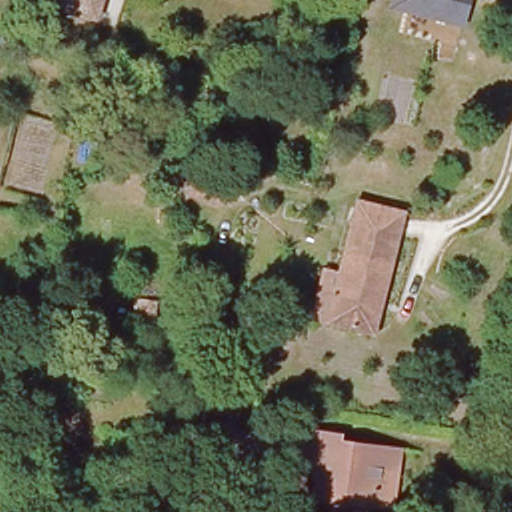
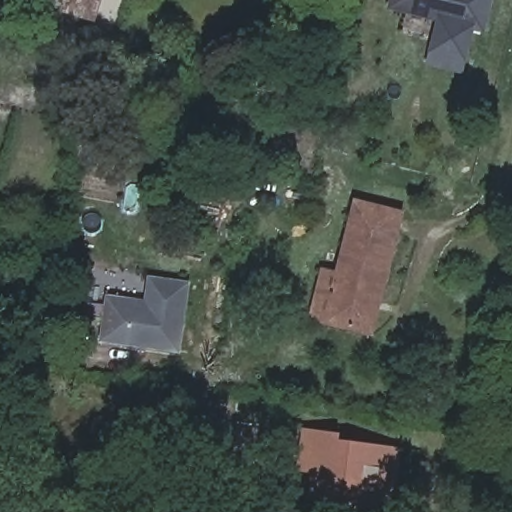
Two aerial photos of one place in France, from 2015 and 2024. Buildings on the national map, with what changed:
unchanged [(44,0),(98,0),(92,20),(56,9),(49,6),(44,1),(44,0)]
unchanged [(389,9),(391,0),(471,0),(464,26),(389,9)]
new [(464,26),(471,0),(493,0),(484,34),(475,31),(463,74),(427,66),(438,20),(464,26)]
unchanged [(199,181),(202,164),(242,173),(239,190),(199,181)]
unchanged [(319,302),(325,272),(341,275),(358,202),(401,211),(371,331),(330,321),(315,318),(319,302)]
unchanged [(25,266),(45,269),(44,285),(43,302),(21,300),(25,266)]
new [(181,355),(100,342),(106,295),(145,300),(149,277),(191,283),(181,355)]
unchanged [(344,440),(343,451),(386,457),(386,454),(405,456),(398,512),(395,512),(315,501),(318,480),(305,478),(307,464),(311,436),(344,440)]

